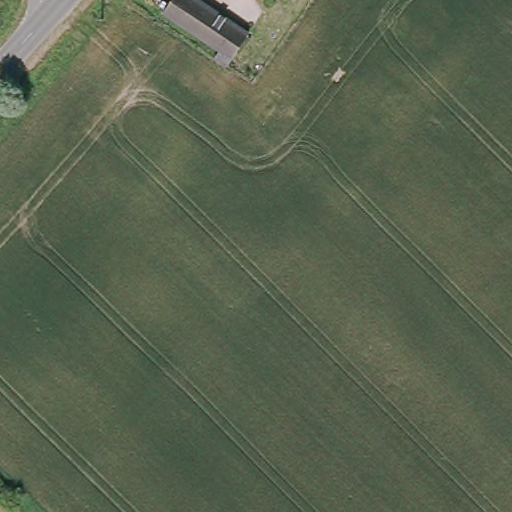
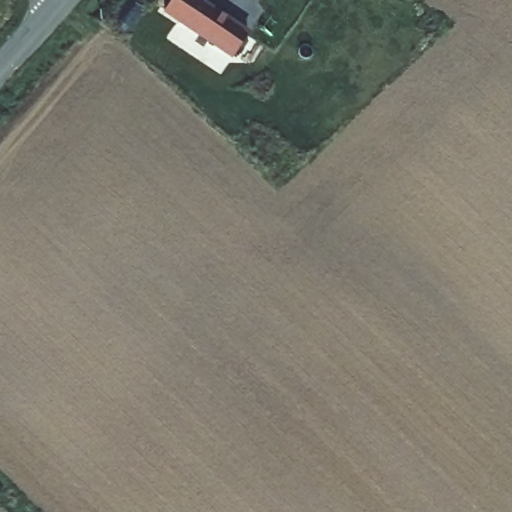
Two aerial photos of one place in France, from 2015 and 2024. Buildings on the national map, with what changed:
unchanged [(227,62),(215,55),(221,46),(164,7),(154,0),(199,0),(246,32),(227,62)]

